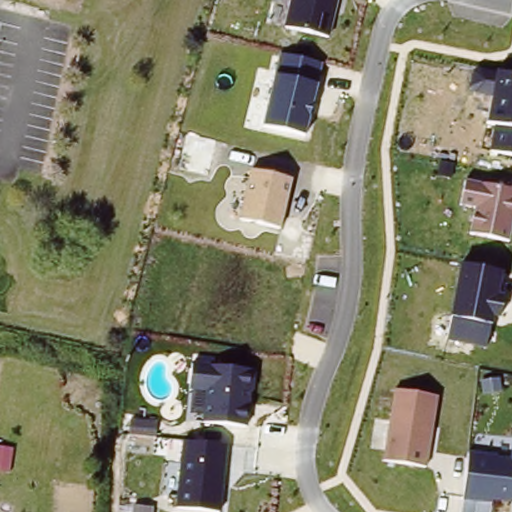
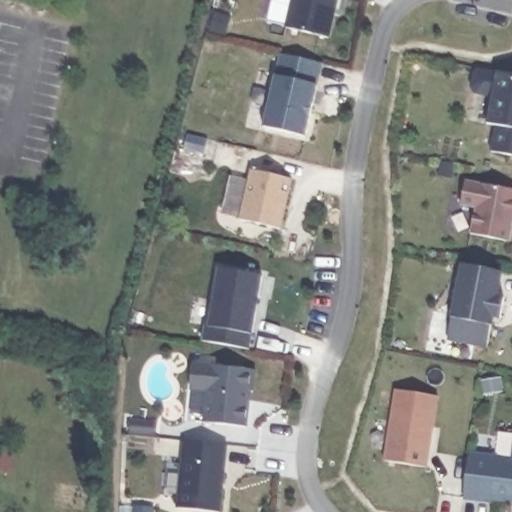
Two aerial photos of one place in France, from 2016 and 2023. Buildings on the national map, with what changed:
unchanged [(282,26),(288,0),(336,0),(329,36),(282,26)]
new [(210,12),(230,17),(224,38),(205,34),(210,12)]
unchanged [(262,123),(274,70),(277,52),(321,62),(315,84),(303,134),(262,123)]
unchanged [(495,124),(487,123),(490,97),(477,95),(470,88),(474,72),(480,68),(512,75),(512,155),(490,151),(495,124)]
unchanged [(239,218),(248,168),(290,176),(282,226),(239,218)]
unchanged [(473,205),(458,203),(463,178),(489,183),(490,177),(512,182),(512,223),(510,237),(469,231),(473,205)]
unchanged [(449,313),(460,260),(501,268),(498,293),(502,294),(498,318),(492,317),(492,324),(485,347),(445,338),(449,313)]
new [(250,333),(249,347),(201,340),(205,324),(209,324),(219,267),(262,275),(252,333),(250,333)]
unchanged [(207,390),(187,388),(190,360),(254,367),(248,425),(204,421),(207,390)]
unchanged [(394,388),(437,394),(427,465),(384,459),(394,388)]
unchanged [(466,453),(509,459),(512,428),(512,429),(512,504),(461,498),(466,453)]
unchanged [(183,437),(227,443),(220,510),(175,506),(183,437)]

